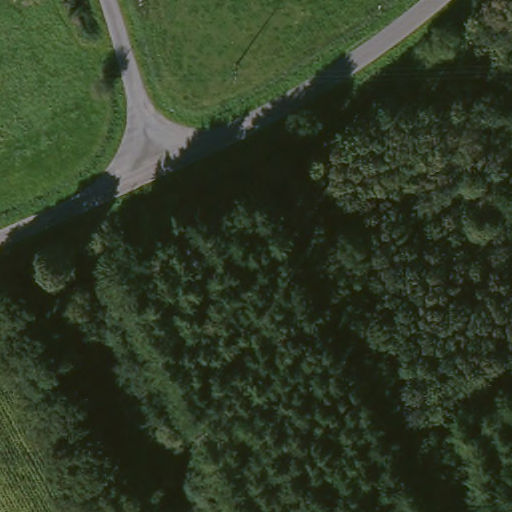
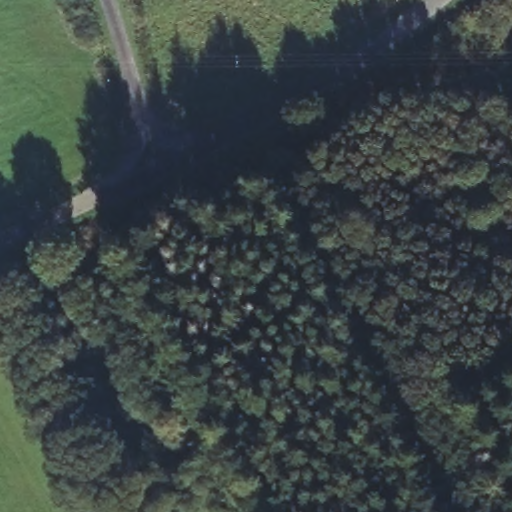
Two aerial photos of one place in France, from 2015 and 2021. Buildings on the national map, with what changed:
[]

